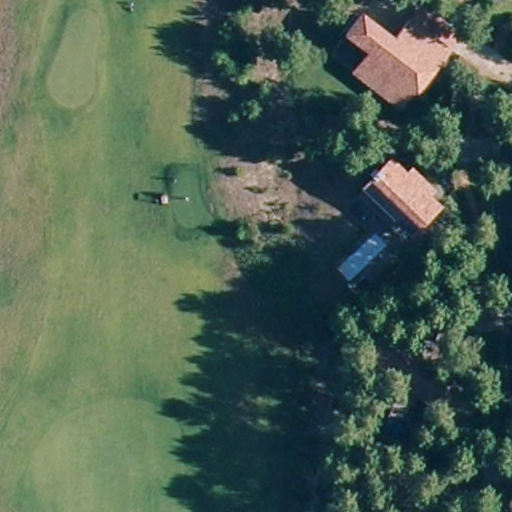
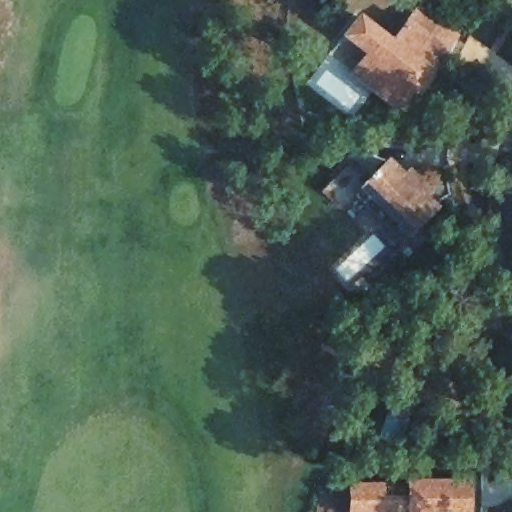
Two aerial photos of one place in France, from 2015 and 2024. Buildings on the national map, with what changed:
unchanged [(409,86),(406,84),(404,82),(389,101),(368,85),(344,66),(357,49),(359,46),(336,27),(351,10),(384,35),(399,16),(410,1),(447,30),(436,45),(421,65),(424,67),(409,86)]
unchanged [(362,189),(373,177),(395,155),(411,170),(416,165),(434,182),(429,187),(441,199),(412,229),(408,233),(362,189)]
unchanged [(357,350),(373,327),(404,351),(423,364),(469,397),(453,419),(414,391),(395,377),(357,350)]
new [(349,481),(407,477),(472,477),(472,512),(348,512),(349,481)]

